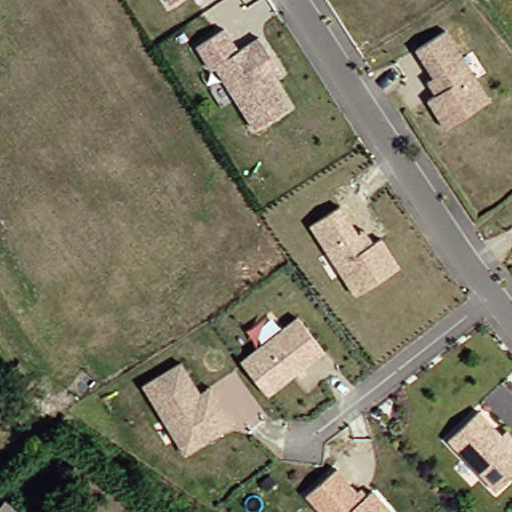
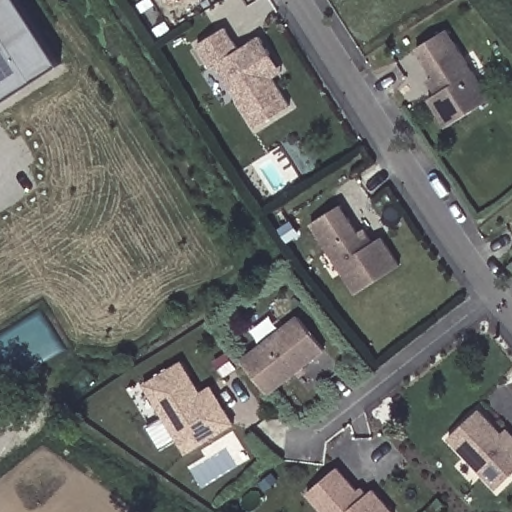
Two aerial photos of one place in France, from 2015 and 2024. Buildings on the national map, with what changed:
new [(0,104),(0,0),(19,0),(60,65),(0,104)]
unchanged [(169,5),(166,0),(177,0),(169,5)]
unchanged [(254,130),(215,68),(210,70),(196,47),(224,30),(238,52),(259,39),(270,57),(280,74),(271,80),(289,109),(254,130)]
unchanged [(431,79),(414,51),(443,32),(488,102),(443,130),(425,102),(434,96),(425,83),(431,79)]
unchanged [(360,230),(367,226),(375,240),(394,268),(358,291),(313,222),(343,203),(360,230)]
unchanged [(238,362),(295,318),(321,352),(265,396),(256,385),(238,362)]
unchanged [(184,455),(141,387),(179,364),(197,395),(208,388),(222,411),(231,426),(184,455)]
unchanged [(512,439),(512,474),(493,491),(446,441),(476,412),(500,437),(505,432),(512,439)]
unchanged [(318,512),(304,496),(335,470),(355,493),(358,490),(364,497),(370,492),(388,512),(318,512)]
unchanged [(26,512),(0,512),(0,504),(5,497),(26,512)]

